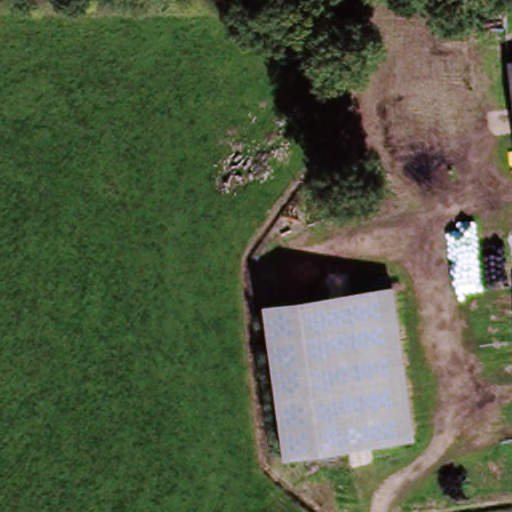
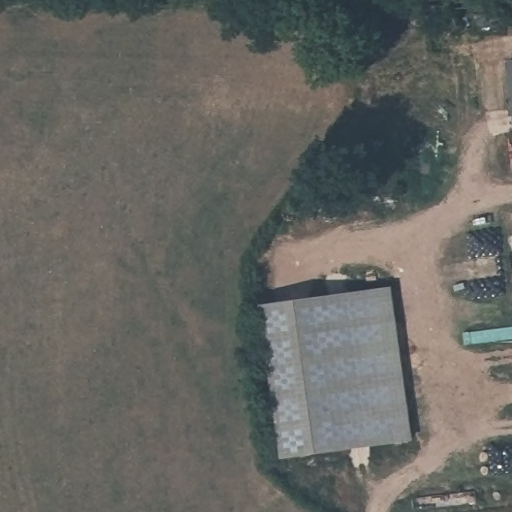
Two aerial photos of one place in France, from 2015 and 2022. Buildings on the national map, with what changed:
unchanged [(508,79),(512,79),(512,100),(508,79)]
unchanged [(392,288),(414,443),(282,462),(260,307),(392,288)]

